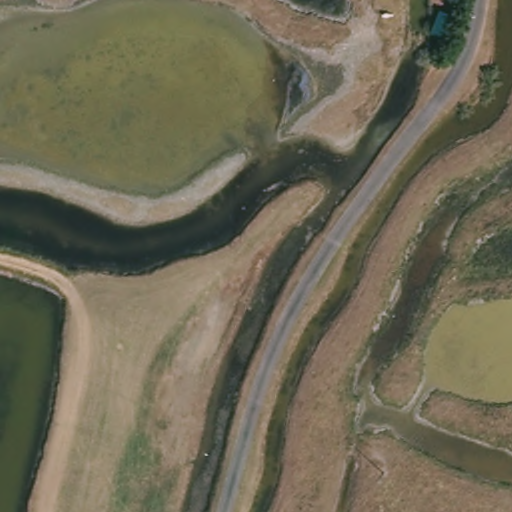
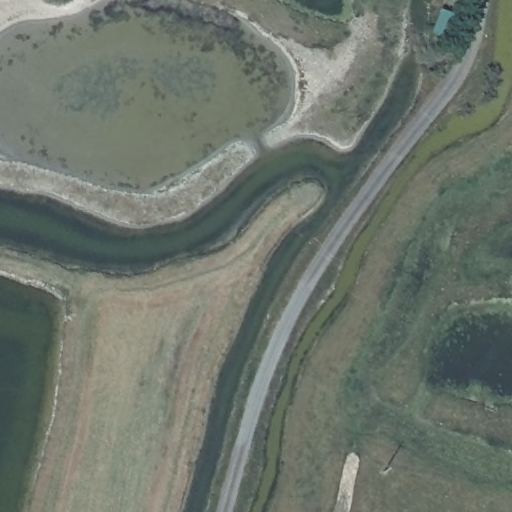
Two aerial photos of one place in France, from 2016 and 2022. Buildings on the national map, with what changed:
[]

